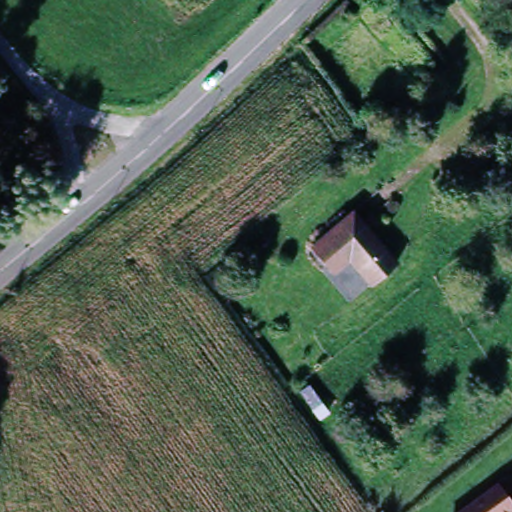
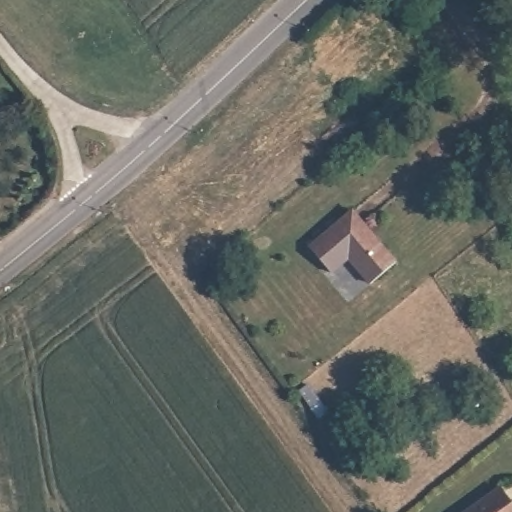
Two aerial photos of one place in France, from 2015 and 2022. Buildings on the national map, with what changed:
unchanged [(308,246),(350,209),(394,257),(367,281),(346,257),(330,271),(308,246)]
unchanged [(496,488),(512,510),(512,512),(461,512),(496,488)]

